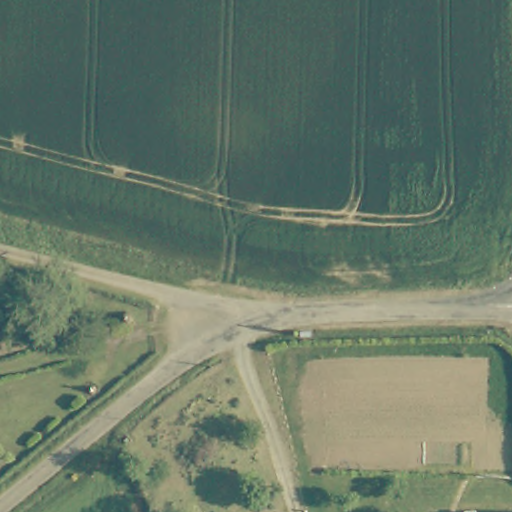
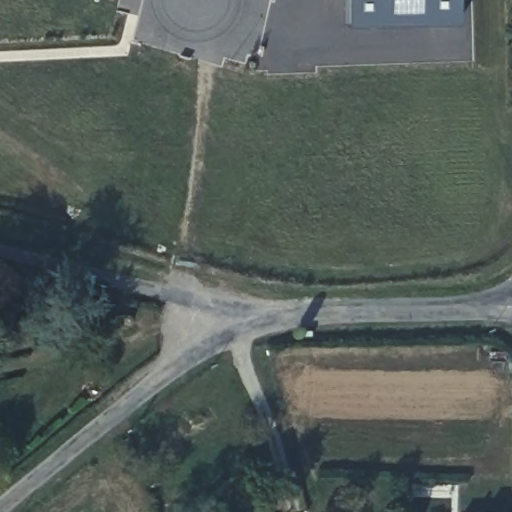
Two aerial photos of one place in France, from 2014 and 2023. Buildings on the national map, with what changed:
new [(342,25),(341,0),(453,0),(454,21),(342,25)]

